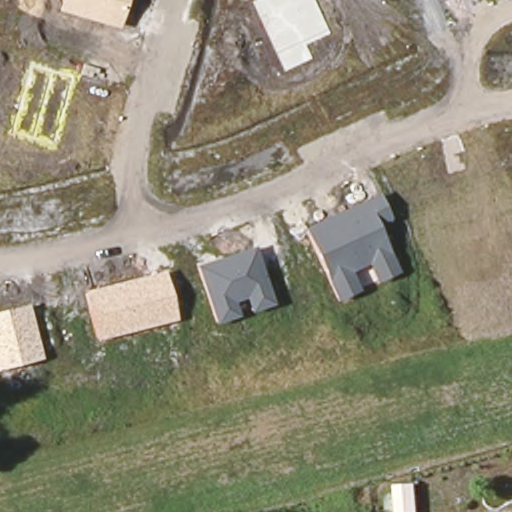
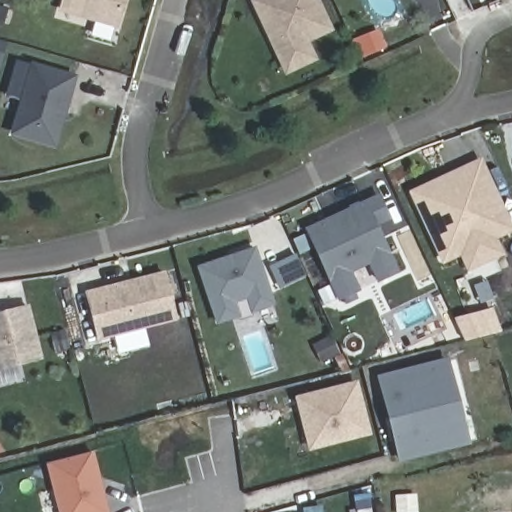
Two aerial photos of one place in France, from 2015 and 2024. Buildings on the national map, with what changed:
unchanged [(58,12),(61,0),(127,0),(120,28),(58,12)]
new [(318,60),(285,76),(252,2),(256,0),(320,0),(334,30),(310,41),(318,60)]
new [(77,75),(56,146),(11,134),(31,62),(77,75)]
new [(443,264),(409,191),(482,157),(512,223),(512,232),(498,239),(506,255),(468,271),(461,256),(443,264)]
unchanged [(379,226),(399,273),(377,283),(368,264),(352,272),(359,291),(338,301),(304,229),(379,194),(391,220),(379,226)]
unchanged [(250,312),(246,298),(234,302),(239,316),(215,325),(195,266),(255,246),(275,305),(250,312)]
unchanged [(177,320),(96,341),(84,292),(165,271),(177,320)]
unchanged [(0,370),(0,311),(29,304),(43,359),(0,370)]
new [(484,315),(492,333),(467,340),(459,321),(484,315)]
new [(453,386),(446,361),(456,358),(477,439),(467,442),(461,417),(451,420),(443,390),(453,386)]
new [(446,361),(453,386),(443,390),(451,420),(461,417),(467,442),(399,459),(392,426),(406,423),(402,404),(387,408),(379,378),(446,361)]
new [(359,385),(372,434),(314,449),(302,400),(359,385)]
new [(91,452),(106,512),(61,512),(49,463),(91,452)]

